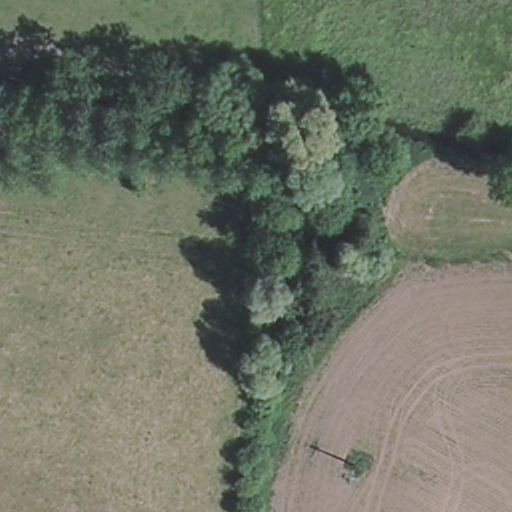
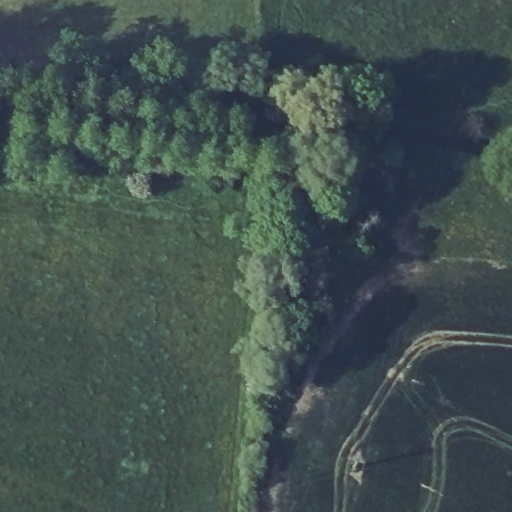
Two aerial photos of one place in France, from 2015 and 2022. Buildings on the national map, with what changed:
unchanged [(311,366),(280,360),(282,322),(315,328),(311,366)]

